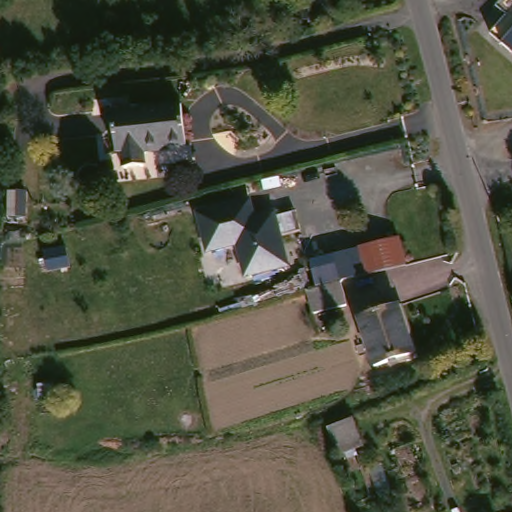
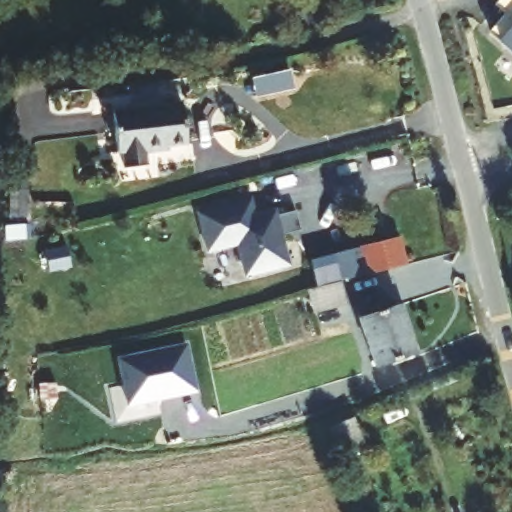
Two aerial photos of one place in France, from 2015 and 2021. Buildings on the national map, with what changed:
unchanged [(505,0),(512,0),(512,11),(502,2),(505,0)]
unchanged [(512,12),(512,44),(496,30),(512,12)]
unchanged [(189,146),(146,151),(147,169),(126,170),(123,148),(117,149),(114,112),(185,106),(189,146)]
unchanged [(238,273),(234,245),(201,251),(196,213),(251,203),(256,220),(280,217),(287,263),(238,273)]
unchanged [(409,267),(400,269),(346,281),(342,252),(402,239),(409,267)]
unchanged [(345,308),(313,315),(308,289),(340,282),(345,308)]
unchanged [(398,304),(411,356),(371,364),(357,314),(398,304)]
new [(187,343),(197,392),(126,407),(116,357),(187,343)]
unchanged [(375,446),(347,454),(338,428),(367,421),(375,446)]

